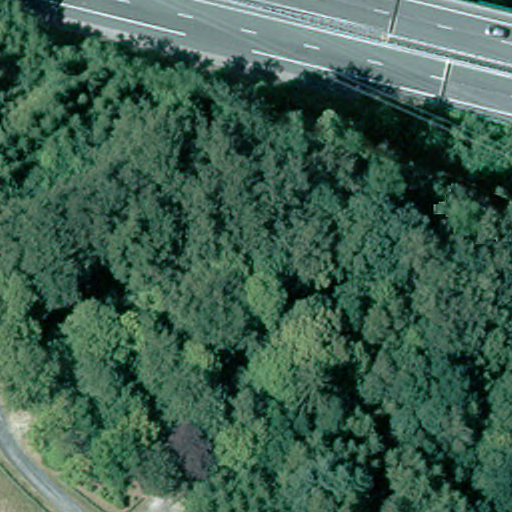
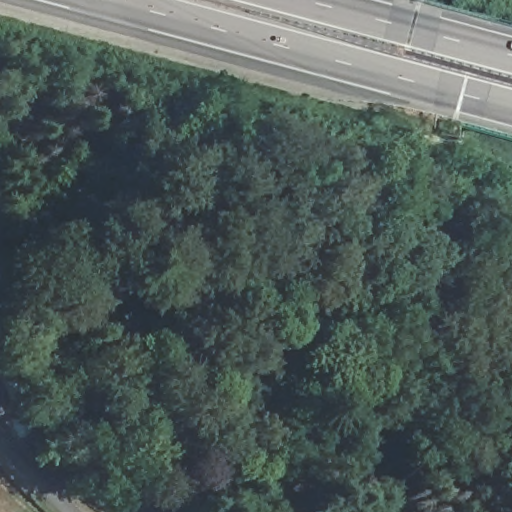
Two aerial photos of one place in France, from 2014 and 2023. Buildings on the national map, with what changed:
[]

